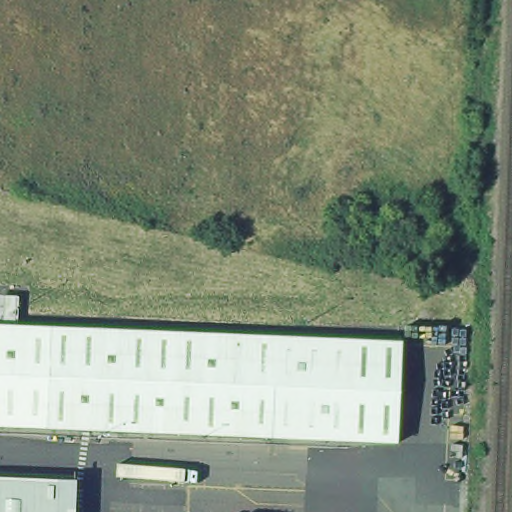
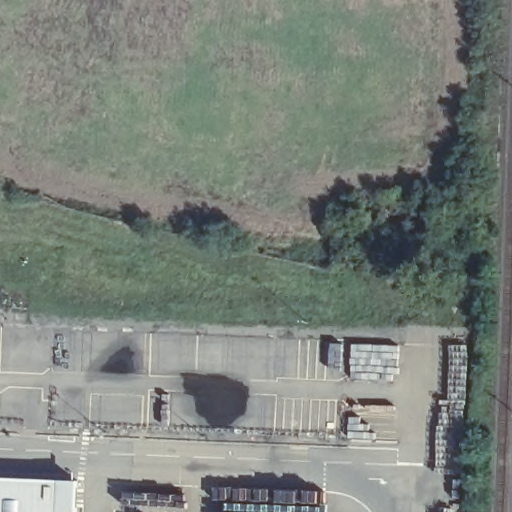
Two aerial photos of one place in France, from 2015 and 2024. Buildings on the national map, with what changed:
demolished [(0,357),(0,326),(250,336),(247,418),(0,357)]
demolished [(402,339),(397,444),(296,438),(297,430),(302,332),(402,339)]
demolished [(0,427),(0,357),(247,418),(246,436),(0,427)]
unchanged [(65,512),(0,512),(0,475),(65,478),(65,512)]

